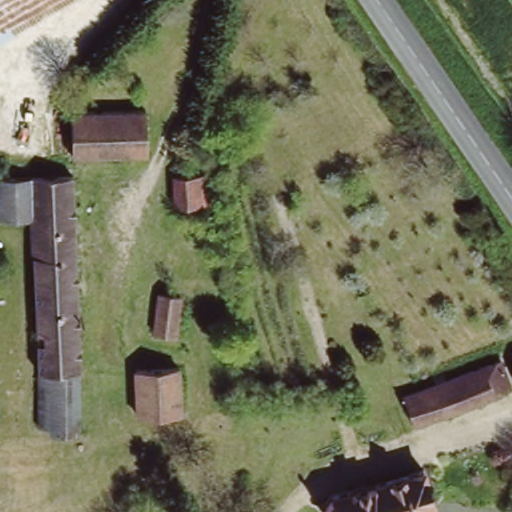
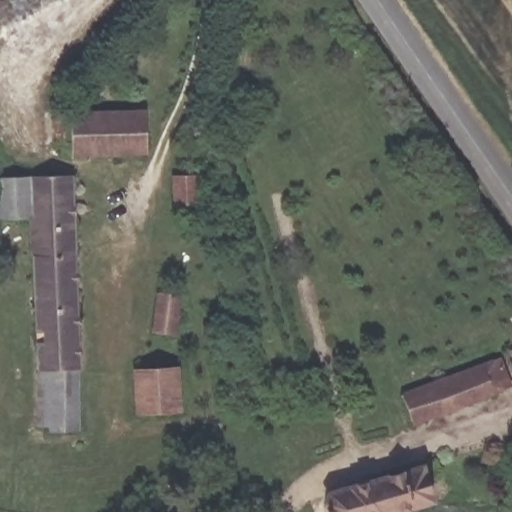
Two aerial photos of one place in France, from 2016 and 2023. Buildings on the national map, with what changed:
unchanged [(0,37),(0,0),(65,0),(0,37)]
unchanged [(142,107),(143,150),(71,153),(69,111),(142,107)]
unchanged [(208,173),(209,202),(175,203),(174,174),(208,173)]
unchanged [(72,179),(78,374),(75,374),(77,432),(48,431),(48,428),(37,427),(29,222),(0,223),(0,181),(72,179)]
unchanged [(158,292),(187,296),(182,331),(173,330),(173,335),(153,332),(158,292)]
unchanged [(512,345),(507,345),(507,340),(512,339),(512,345)]
unchanged [(490,349),(505,377),(451,404),(450,402),(411,419),(399,393),(490,349)]
unchanged [(177,365),(180,407),(137,410),(135,366),(177,365)]
unchanged [(413,457),(425,493),(403,500),(369,512),(321,512),(317,498),(320,488),(413,457)]

